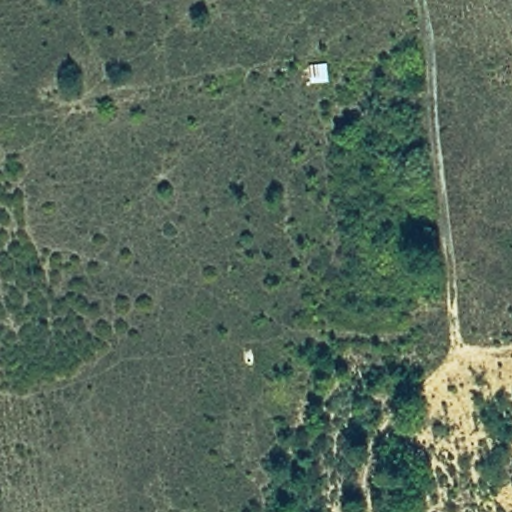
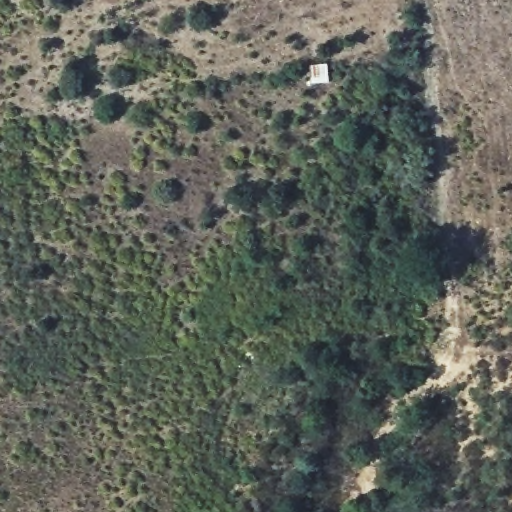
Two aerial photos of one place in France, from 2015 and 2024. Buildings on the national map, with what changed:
unchanged [(308,61),(328,59),(332,83),(311,84),(308,61)]

